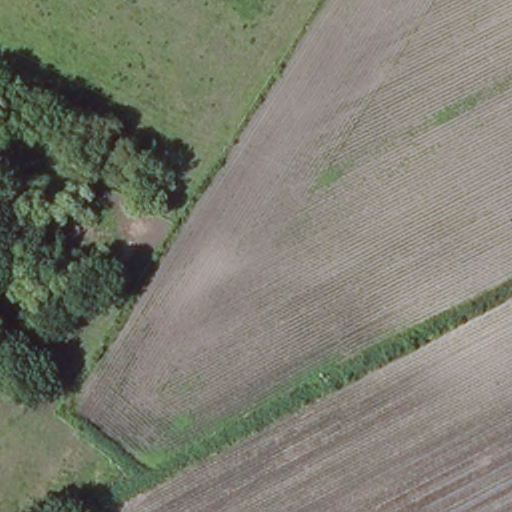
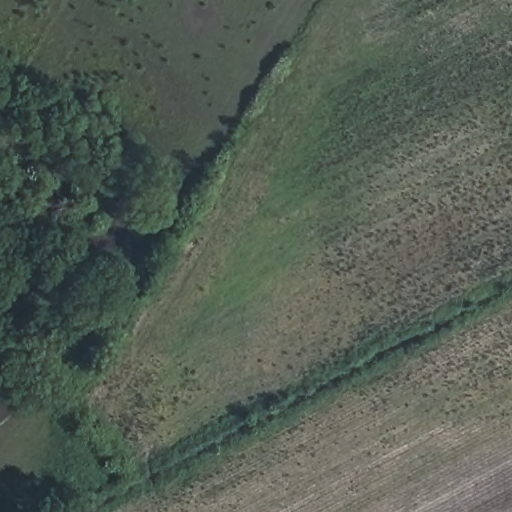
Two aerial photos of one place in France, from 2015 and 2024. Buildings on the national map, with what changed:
[]

